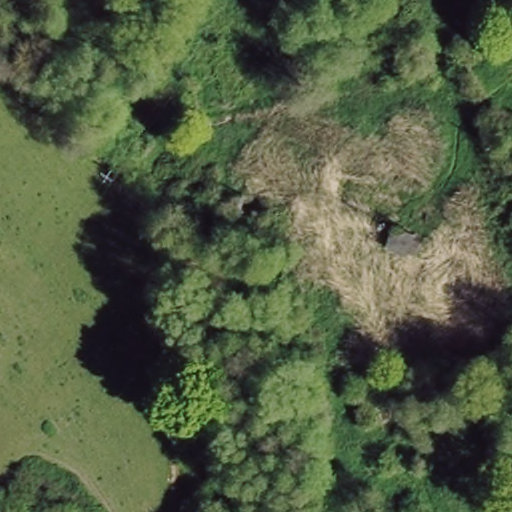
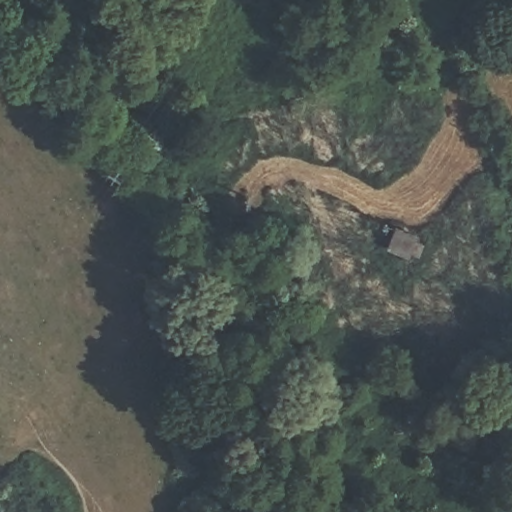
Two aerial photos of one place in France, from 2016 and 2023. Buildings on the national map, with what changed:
unchanged [(395,228),(415,237),(407,257),(402,255),(399,262),(388,257),(391,251),(385,249),(395,228)]

